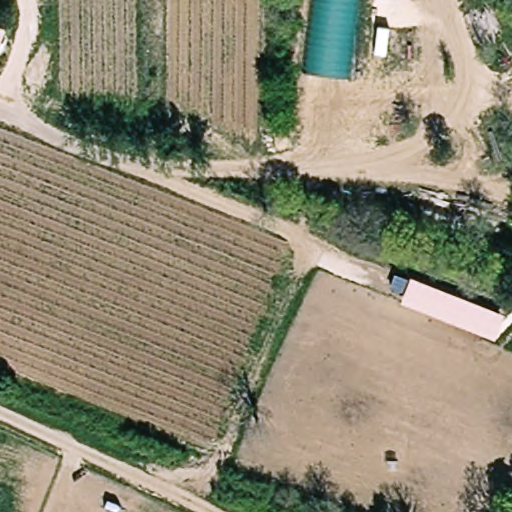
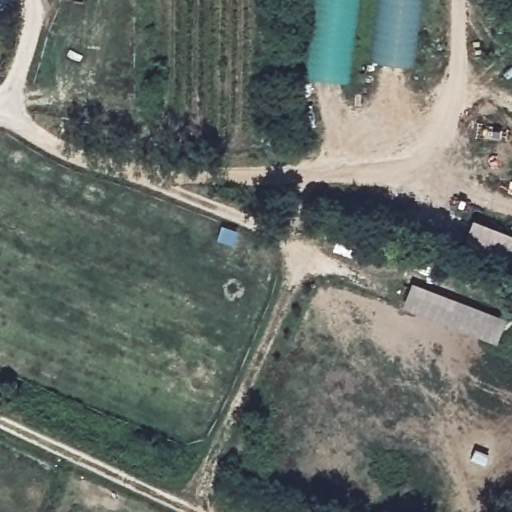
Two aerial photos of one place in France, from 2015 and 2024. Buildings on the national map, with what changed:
unchanged [(308,76),(318,0),(354,0),(343,80),(308,76)]
new [(419,0),(411,66),(370,60),(377,0),(419,0)]
unchanged [(390,291),(395,278),(410,284),(411,282),(504,318),(495,343),(401,307),(406,296),(390,291)]

